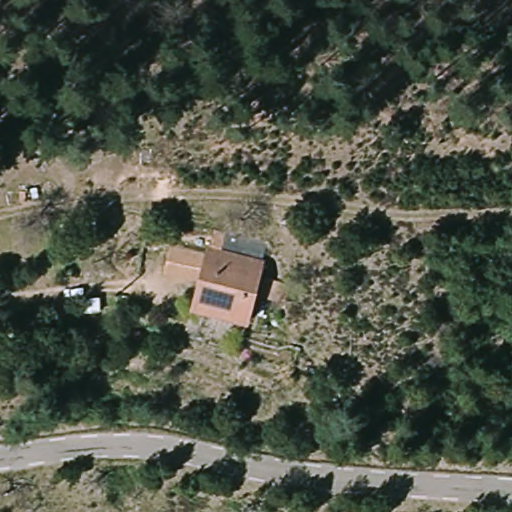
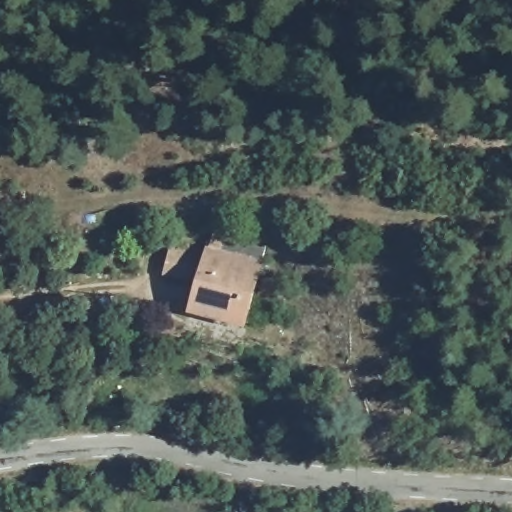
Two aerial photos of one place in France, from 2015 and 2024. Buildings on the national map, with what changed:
unchanged [(263,262),(246,329),(189,318),(206,246),(263,262)]

